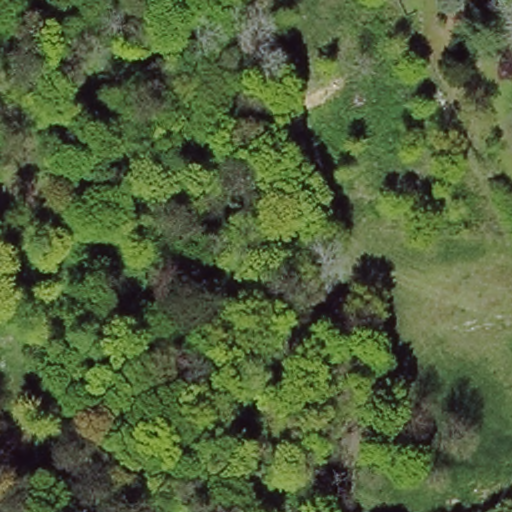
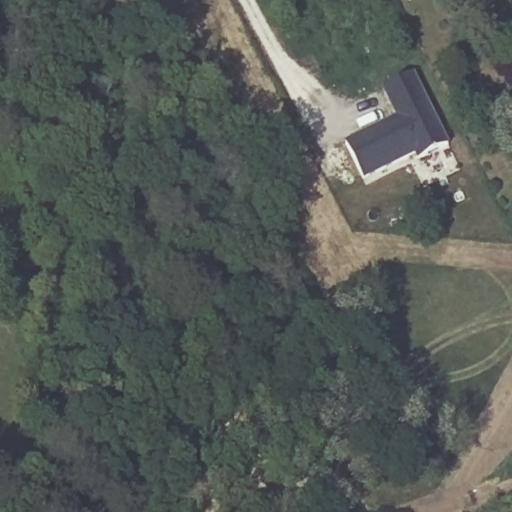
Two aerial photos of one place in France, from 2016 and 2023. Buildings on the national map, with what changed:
new [(400,117),(385,88),(413,74),(450,145),(421,160),(417,153),(365,179),(347,144),(400,117)]

